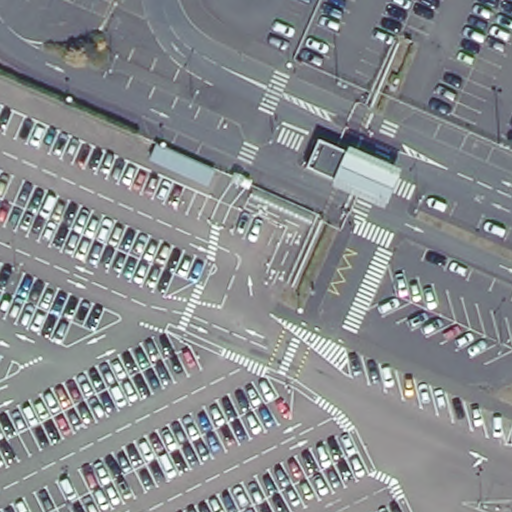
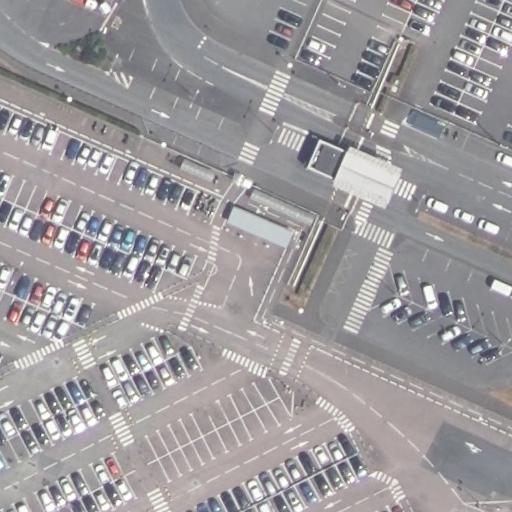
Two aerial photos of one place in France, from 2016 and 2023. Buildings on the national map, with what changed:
unchanged [(308,164),(320,135),(347,147),(350,144),(405,167),(388,206),(308,164)]

